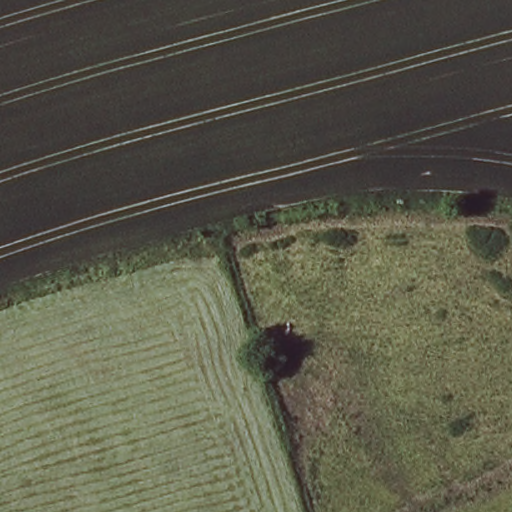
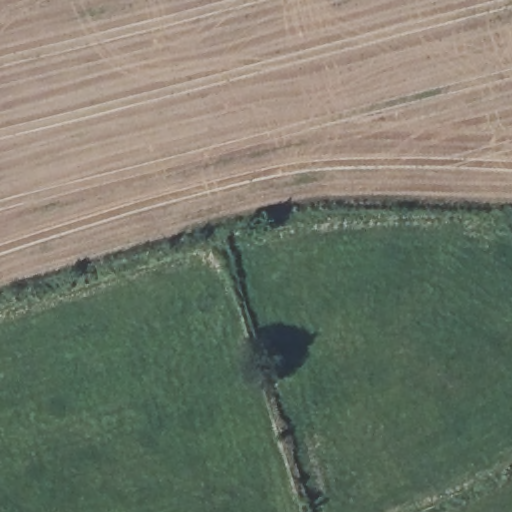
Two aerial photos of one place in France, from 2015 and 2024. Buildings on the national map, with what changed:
[]

